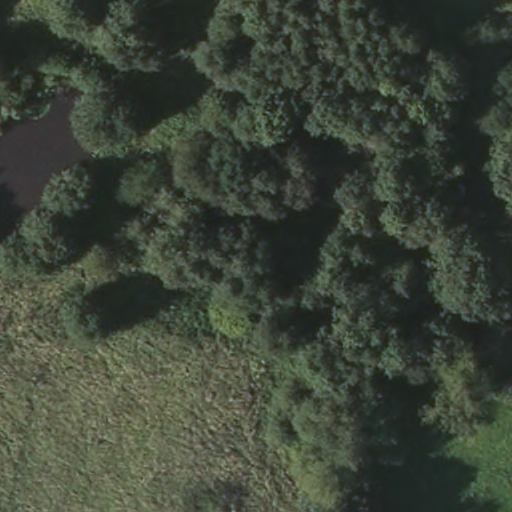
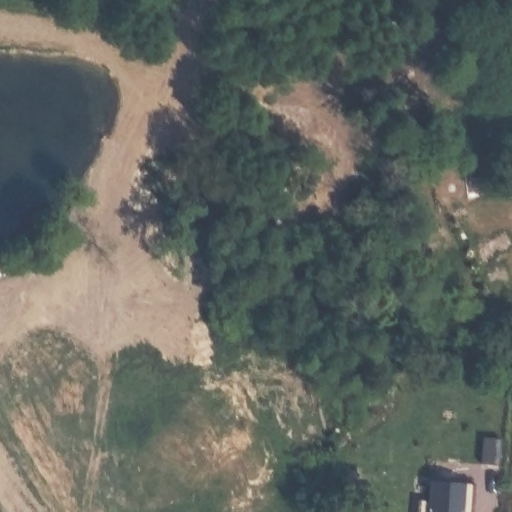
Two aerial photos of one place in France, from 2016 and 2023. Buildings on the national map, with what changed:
new [(422,479),(475,482),(473,512),(420,512),(422,479)]

